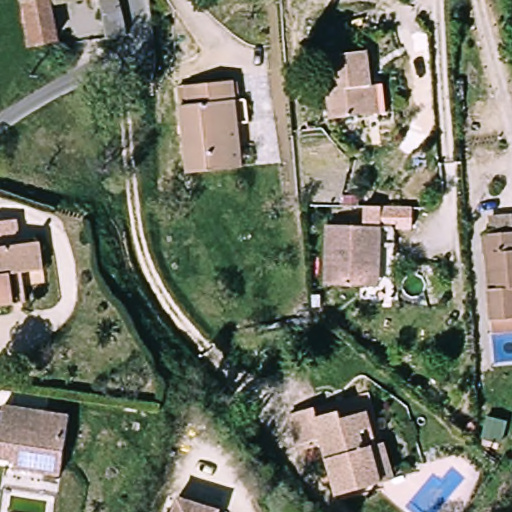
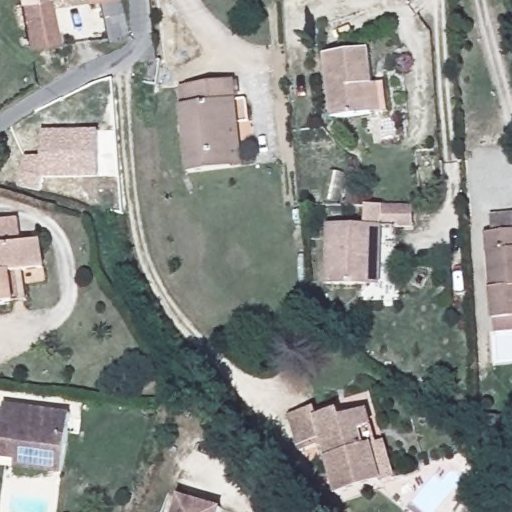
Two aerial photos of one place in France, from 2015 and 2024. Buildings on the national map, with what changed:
unchanged [(58,10),(61,46),(29,47),(23,0),(83,0),(58,10)]
unchanged [(122,42),(103,42),(99,0),(119,0),(123,25),(122,42)]
unchanged [(390,117),(373,119),(327,120),(325,60),(369,60),(371,87),(389,87),(390,117)]
unchanged [(231,172),(183,174),(180,114),(189,111),(188,85),(241,83),(242,107),(244,171),(231,172)]
new [(101,132),(101,177),(44,179),(40,191),(17,185),(26,156),(44,157),(44,131),(101,132)]
unchanged [(493,322),(490,291),(486,249),(485,239),(489,238),(487,215),(512,212),(512,332),(494,334),(493,322)]
unchanged [(331,287),(333,228),(385,230),(382,288),(331,287)]
unchanged [(33,283),(33,298),(18,300),(0,304),(0,249),(41,240),(45,266),(46,280),(33,283)]
unchanged [(0,467),(0,425),(11,426),(13,406),(68,407),(65,466),(35,464),(34,465),(34,454),(13,452),(13,460),(12,467),(0,467)]
unchanged [(398,483),(383,487),(340,498),(328,448),(302,455),(295,422),(320,415),(322,422),(345,415),(347,423),(373,417),(381,452),(390,450),(398,483)]
unchanged [(220,512),(179,512),(182,501),(220,512)]

